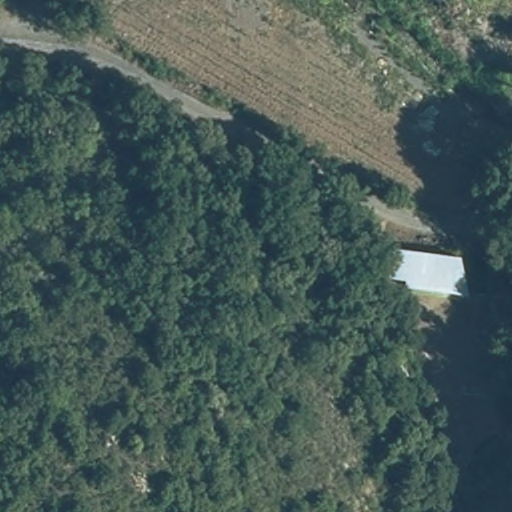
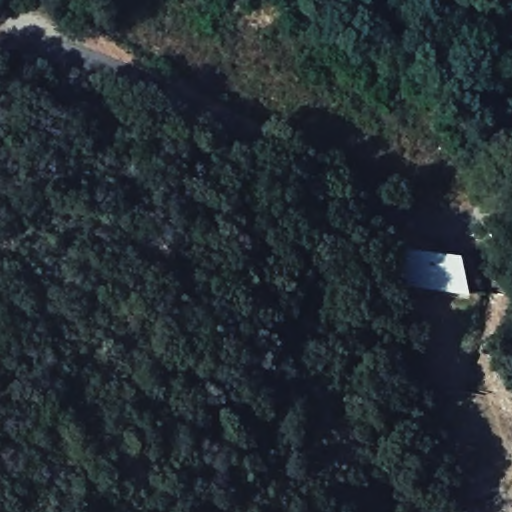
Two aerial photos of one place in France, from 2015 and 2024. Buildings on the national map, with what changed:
unchanged [(387,283),(382,245),(461,255),(469,296),(387,283)]

